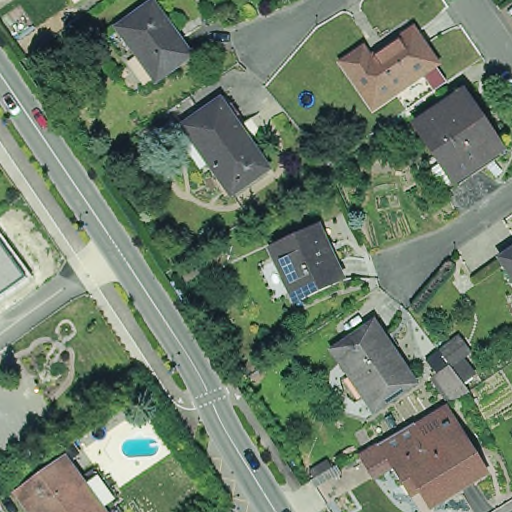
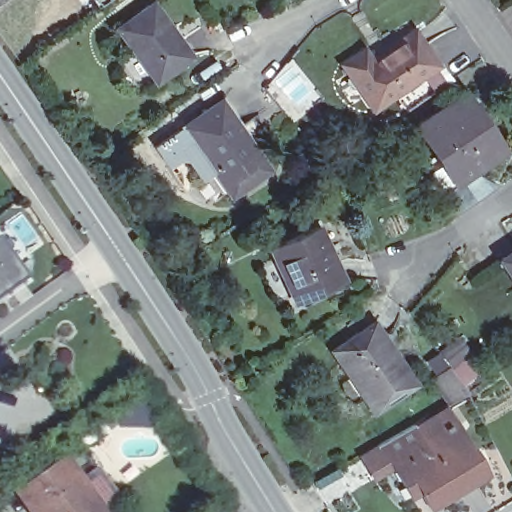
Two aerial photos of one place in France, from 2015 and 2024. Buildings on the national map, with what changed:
unchanged [(153,2),(191,54),(157,78),(120,26),(153,2)]
unchanged [(340,65),(361,51),(367,61),(410,32),(432,65),(369,109),(340,65)]
unchanged [(449,185),(434,164),(447,154),(424,121),(462,96),(469,91),(482,112),(506,146),(468,172),(462,177),(449,185)]
unchanged [(247,122),(236,130),(264,170),(226,197),(179,129),(229,95),(247,122)]
unchanged [(266,249),(312,227),(337,281),(291,303),(266,249)]
unchanged [(0,300),(0,243),(28,280),(0,300)]
unchanged [(501,254),(512,246),(512,272),(501,254)]
unchanged [(334,345),(376,317),(417,379),(374,407),(364,391),(351,371),(334,345)]
unchanged [(454,364),(443,349),(455,340),(465,356),(454,364)]
unchanged [(469,393),(451,403),(435,379),(451,368),(469,393)]
unchanged [(432,510),(414,483),(405,488),(392,469),(380,448),(414,427),(425,443),(445,431),(456,424),(477,459),(487,476),(432,510)]
unchanged [(60,461),(97,512),(24,512),(12,495),(60,461)]

